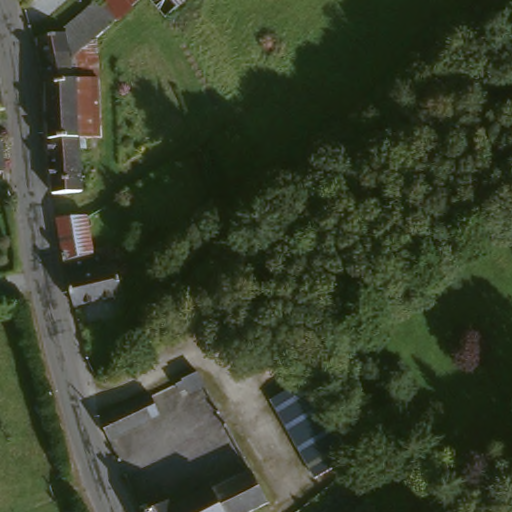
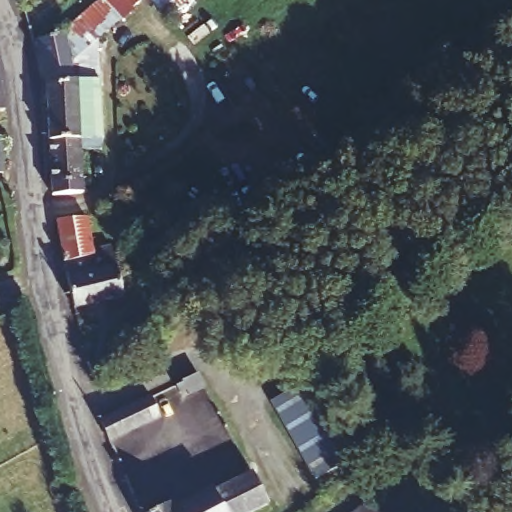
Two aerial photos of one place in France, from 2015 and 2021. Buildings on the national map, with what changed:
unchanged [(101,0),(141,0),(114,24),(97,3),(101,0)]
unchanged [(164,23),(146,0),(193,0),(164,23)]
unchanged [(49,143),(48,90),(43,62),(39,41),(66,35),(66,31),(97,3),(114,24),(96,42),(99,82),(102,142),(81,144),(81,143),(79,140),(49,143)]
unchanged [(0,114),(0,85),(4,113),(0,114)]
unchanged [(84,194),(52,196),(49,143),(79,140),(81,143),(81,144),(84,194)]
unchanged [(3,175),(0,175),(0,144),(1,144),(3,175)]
unchanged [(93,261),(114,256),(124,303),(74,315),(56,228),(88,224),(93,261)]
unchanged [(203,386),(186,395),(184,390),(180,392),(176,385),(197,375),(203,386)]
unchanged [(357,455),(334,469),(291,390),(314,378),(357,455)]
unchanged [(159,420),(109,443),(99,422),(149,398),(159,420)]
unchanged [(512,465),(512,491),(491,505),(479,487),(512,465)]
unchanged [(266,510),(263,512),(179,512),(211,495),(213,500),(250,480),(266,510)]
unchanged [(373,512),(356,512),(366,504),(373,512)]
unchanged [(168,512),(165,512),(168,510),(168,512)]

